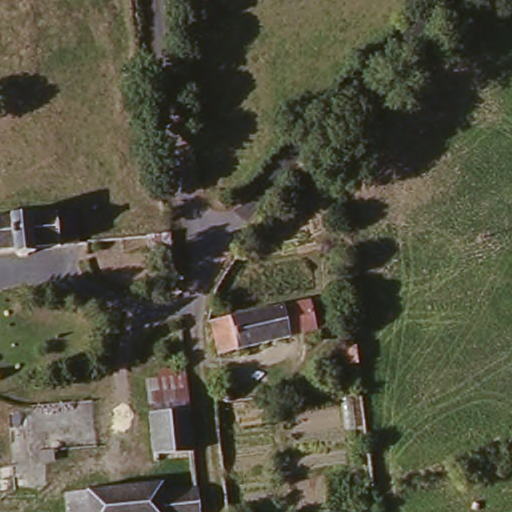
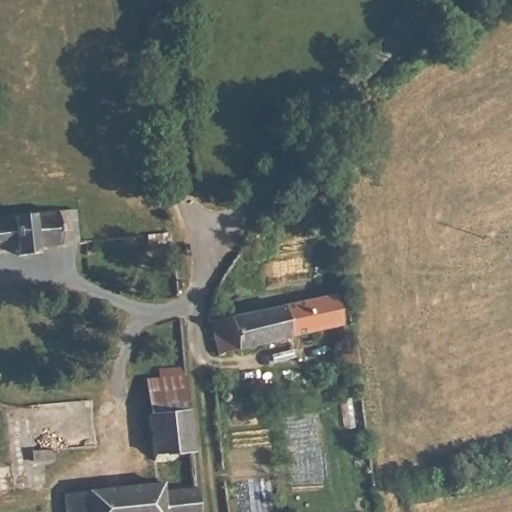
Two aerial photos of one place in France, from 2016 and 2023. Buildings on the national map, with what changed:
unchanged [(56,213),(74,212),(76,242),(58,243),(30,246),(28,255),(21,255),(16,247),(0,249),(0,217),(55,211),(56,213)]
unchanged [(171,245),(147,249),(145,235),(169,233),(171,245)]
unchanged [(211,322),(308,299),(309,302),(331,297),(338,324),(316,328),(217,352),(211,322)]
unchanged [(358,362),(341,363),(339,346),(356,345),(358,362)]
unchanged [(188,409),(153,412),(150,379),(185,375),(188,409)]
unchanged [(188,409),(192,449),(154,454),(149,413),(153,412),(188,409)]
unchanged [(161,487),(163,496),(195,491),(197,512),(65,512),(64,498),(161,487)]

